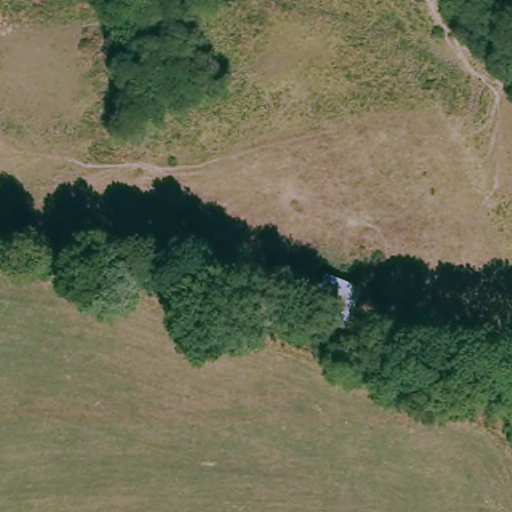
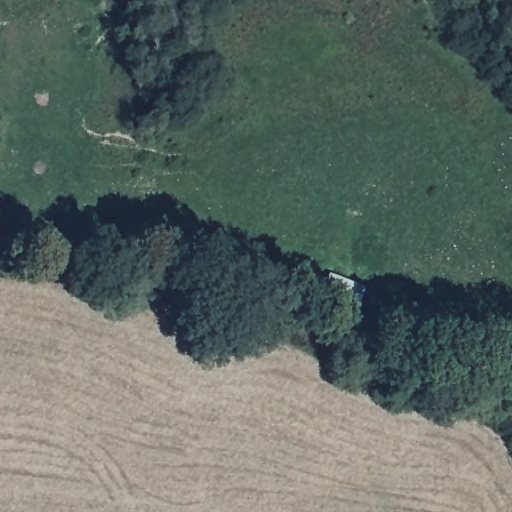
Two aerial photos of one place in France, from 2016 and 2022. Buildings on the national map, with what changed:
unchanged [(343,330),(303,310),(322,270),(361,284),(343,330)]

